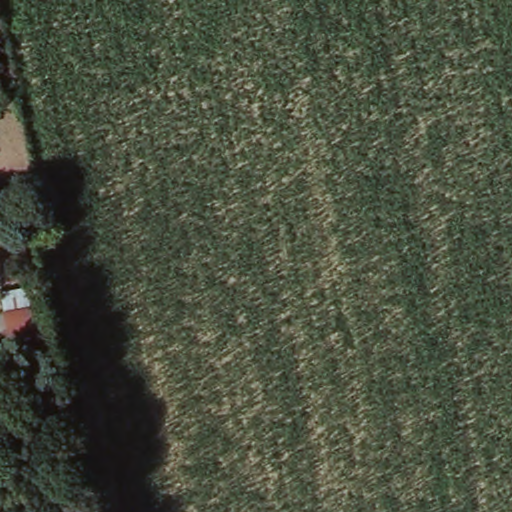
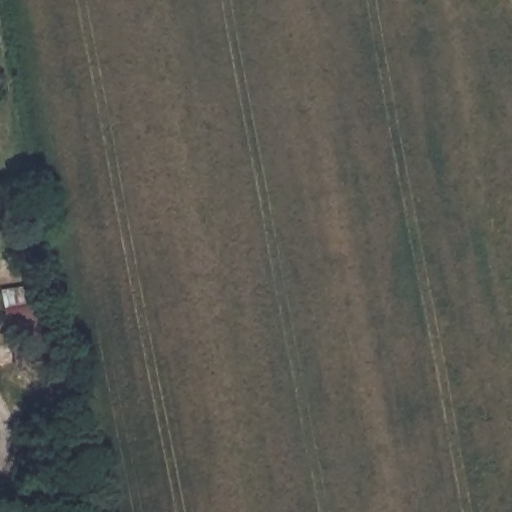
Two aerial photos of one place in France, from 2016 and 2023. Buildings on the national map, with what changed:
unchanged [(41,303),(46,327),(10,335),(6,311),(41,303)]
unchanged [(47,336),(53,360),(16,368),(11,345),(47,336)]

